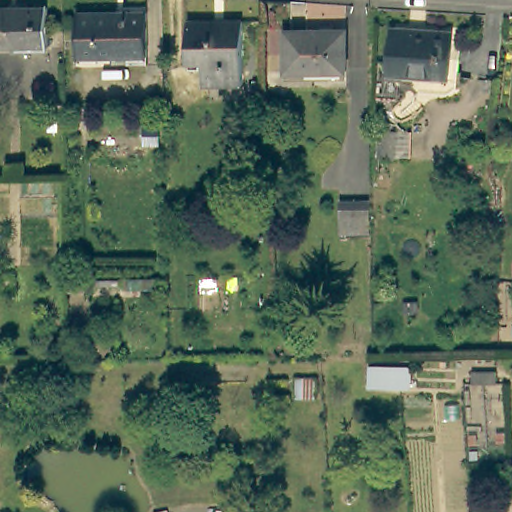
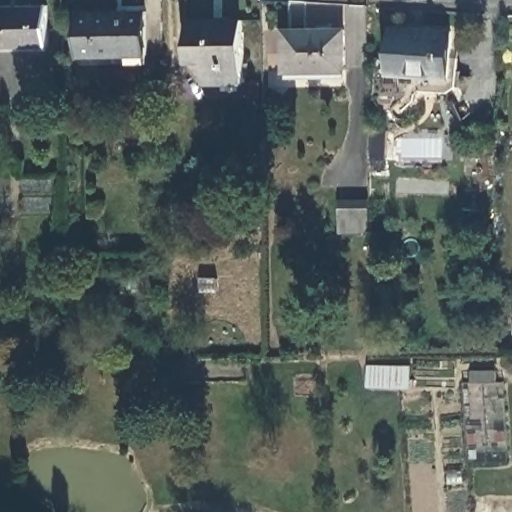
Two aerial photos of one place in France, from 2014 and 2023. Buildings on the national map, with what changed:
unchanged [(47,7),(48,47),(0,48),(0,8),(47,7)]
unchanged [(147,11),(147,55),(78,55),(77,11),(147,11)]
unchanged [(242,21),(241,83),(187,82),(187,21),(242,21)]
unchanged [(451,33),(447,80),(386,74),(391,27),(451,33)]
unchanged [(345,32),(345,71),(285,72),(285,32),(345,32)]
unchanged [(340,233),(339,201),(368,202),(369,232),(340,233)]
unchanged [(86,290),(71,290),(71,279),(86,279),(86,290)]
unchanged [(165,288),(132,289),(132,279),(165,279),(165,288)]
unchanged [(496,370),(496,380),(474,381),(474,370),(496,370)]

